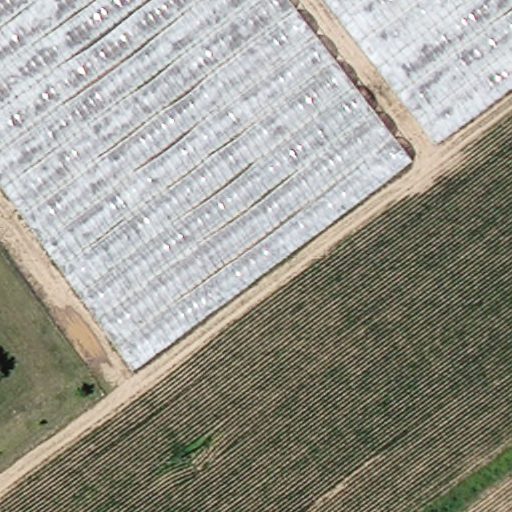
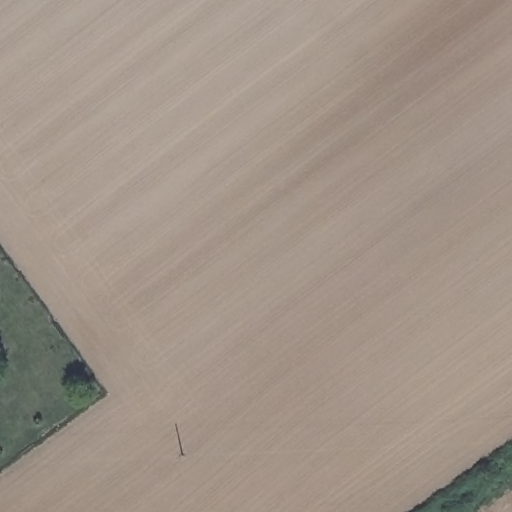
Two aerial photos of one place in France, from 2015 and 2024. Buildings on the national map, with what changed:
new [(0,182),(0,0),(289,0),(412,161),(134,370),(0,182)]
new [(326,0),(512,0),(512,86),(435,145),(326,0)]

